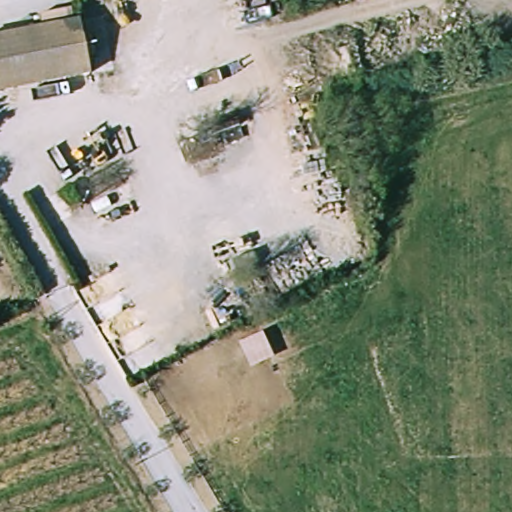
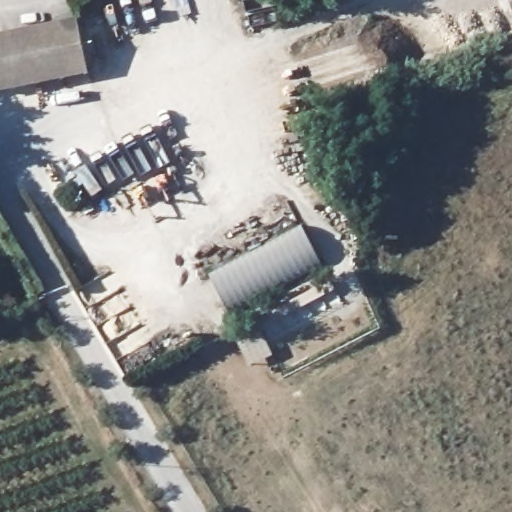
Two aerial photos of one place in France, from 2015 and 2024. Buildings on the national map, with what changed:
unchanged [(0,93),(0,38),(77,23),(87,77),(0,93)]
new [(231,314),(209,276),(302,227),(324,268),(231,314)]
unchanged [(275,358),(250,369),(238,343),(262,331),(275,358)]

